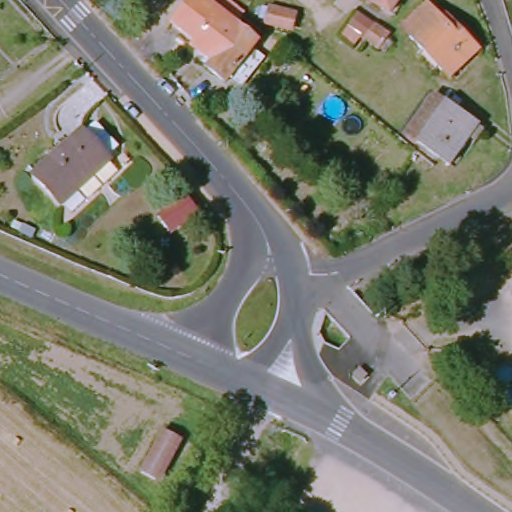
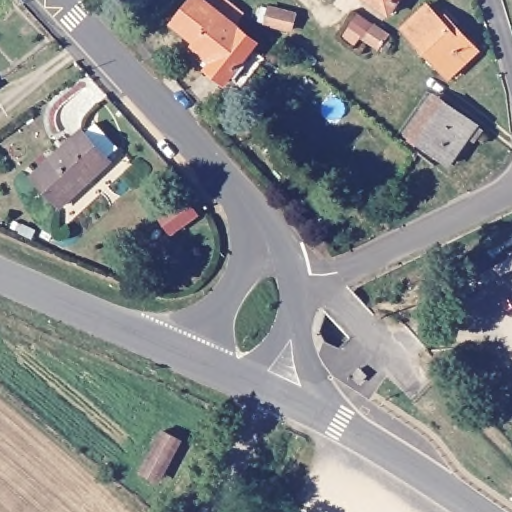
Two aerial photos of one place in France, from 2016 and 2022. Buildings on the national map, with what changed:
unchanged [(223,83),(206,70),(210,64),(189,47),(206,25),(185,7),(190,0),(219,0),(223,2),(216,12),(255,42),(223,83)]
unchanged [(369,0),(396,0),(387,13),(369,0)]
unchanged [(446,70),(402,21),(425,0),(438,14),(444,9),(451,16),(475,44),(446,70)]
unchanged [(263,17),(266,2),(299,10),(296,25),(263,17)]
unchanged [(381,45),(367,35),(378,20),(392,30),(388,35),(381,45)]
unchanged [(404,134),(424,105),(430,94),(441,102),(471,125),(444,162),(404,134)]
unchanged [(23,173),(77,133),(80,136),(91,127),(111,154),(98,163),(101,166),(48,206),(23,173)]
unchanged [(134,485),(154,441),(170,449),(150,492),(134,485)]

